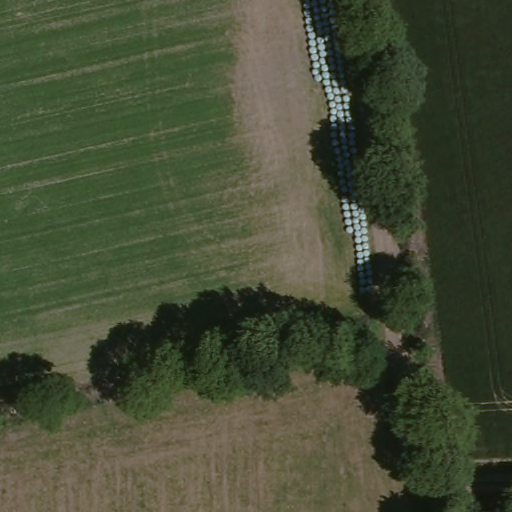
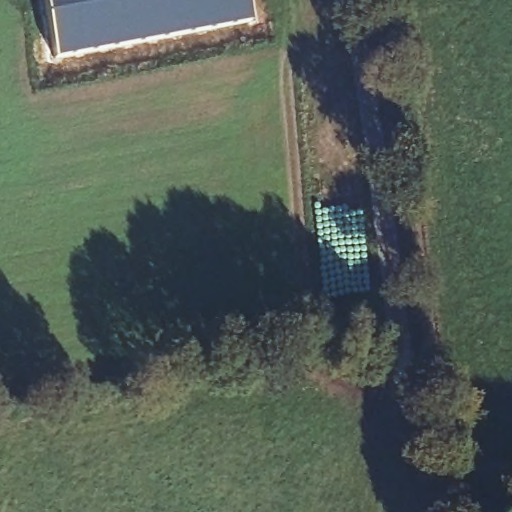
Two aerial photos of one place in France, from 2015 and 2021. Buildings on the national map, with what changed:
new [(256,22),(59,59),(49,0),(252,0),(256,22)]

